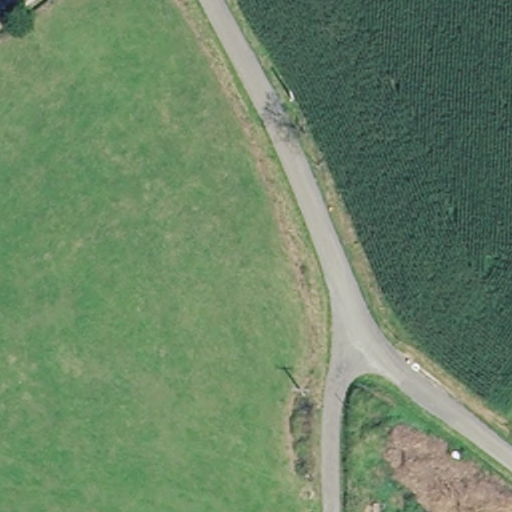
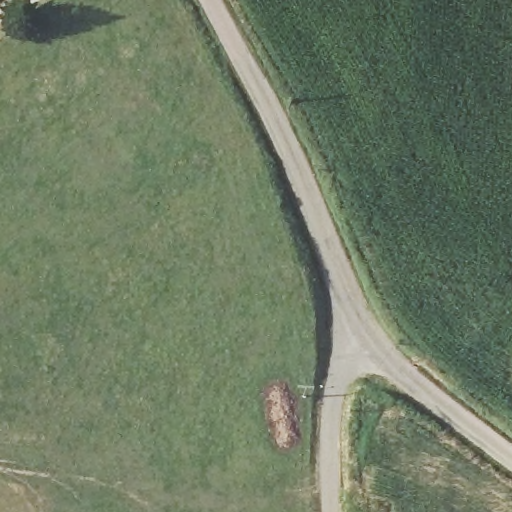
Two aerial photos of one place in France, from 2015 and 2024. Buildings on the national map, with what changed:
[]

